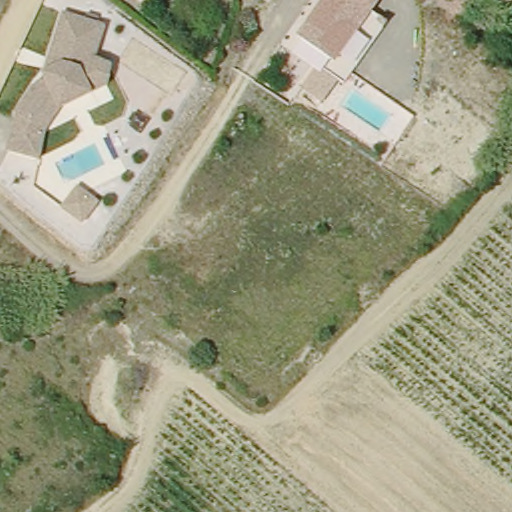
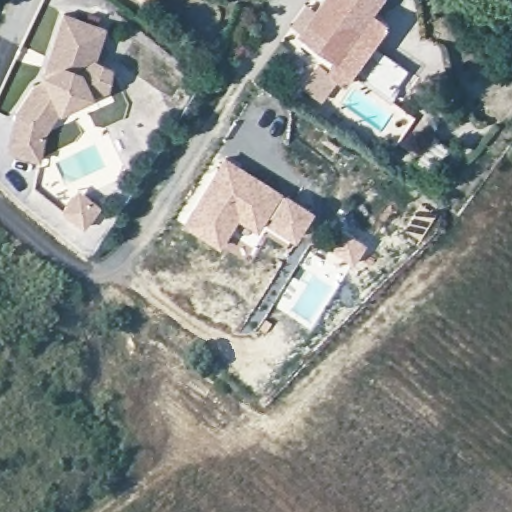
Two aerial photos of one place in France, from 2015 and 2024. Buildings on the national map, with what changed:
unchanged [(376,15),(337,61),(302,32),(330,0),(389,0),(376,15)]
unchanged [(50,132),(40,161),(10,151),(30,83),(41,78),(62,19),(105,31),(97,63),(113,67),(107,86),(60,108),(57,110),(50,132)]
new [(197,196),(224,154),(282,188),(263,222),(257,230),(237,219),(218,247),(180,227),(197,196)]
new [(77,187),(100,203),(83,225),(61,210),(77,187)]
new [(282,188),(313,207),(294,239),(263,222),(282,188)]
new [(342,222),(367,239),(352,262),(328,247),(342,222)]

